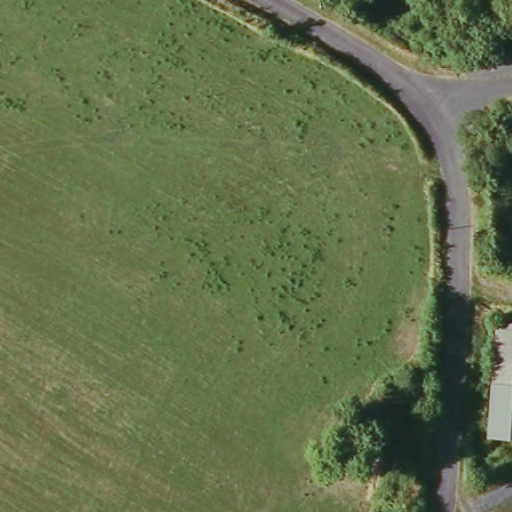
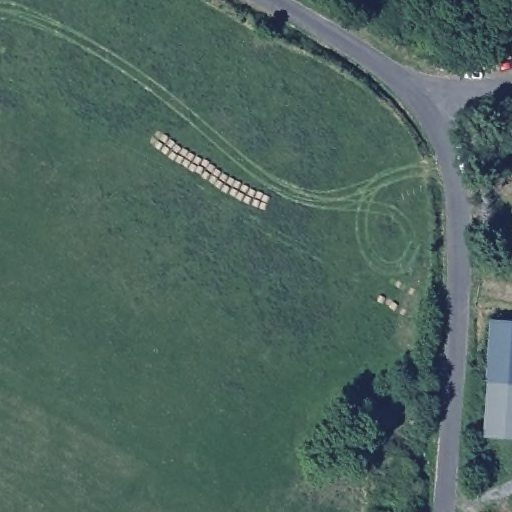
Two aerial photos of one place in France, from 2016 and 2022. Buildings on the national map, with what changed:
unchanged [(502,322),(512,323),(512,434),(482,430),(502,322)]
unchanged [(410,512),(399,512),(382,503),(399,471),(423,485),(410,512)]

